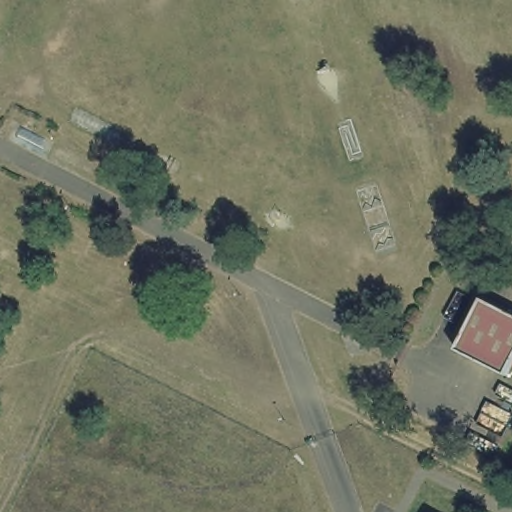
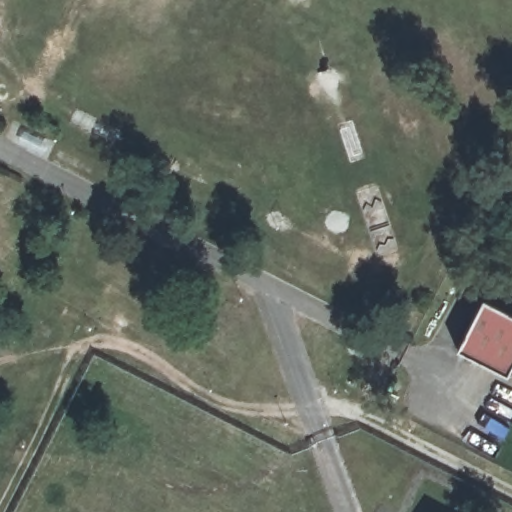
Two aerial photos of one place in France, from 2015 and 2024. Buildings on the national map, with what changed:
unchanged [(460,348),(485,299),(512,313),(512,365),(507,373),(460,348)]

